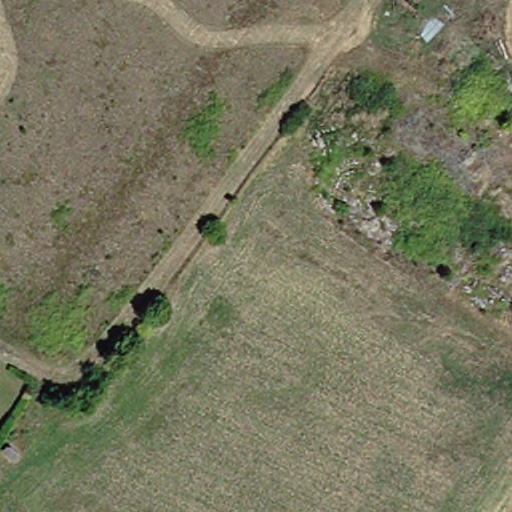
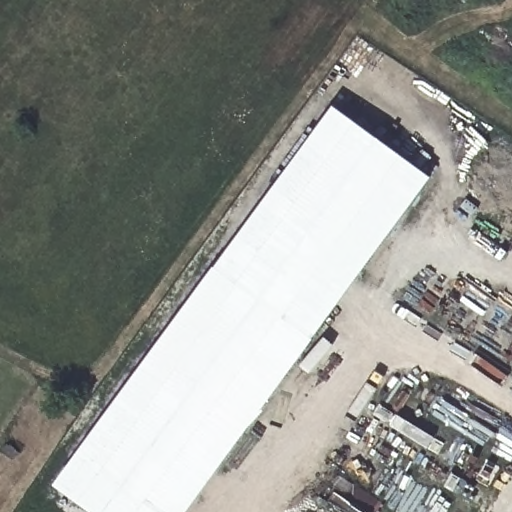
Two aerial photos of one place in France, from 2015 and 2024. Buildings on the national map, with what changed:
new [(187,512),(158,512),(76,453),(334,106),(430,177),(187,512)]
new [(76,453),(158,512),(90,512),(53,485),(76,453)]

